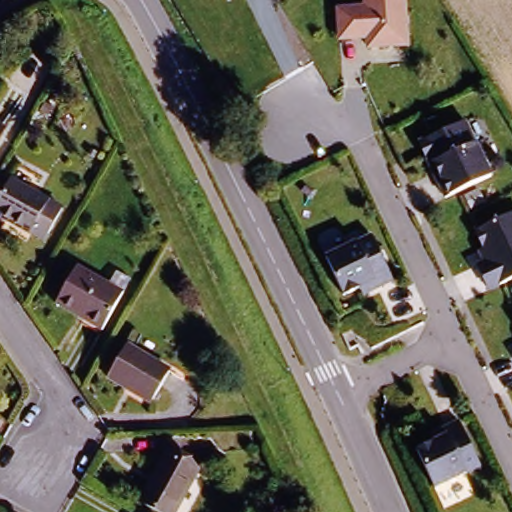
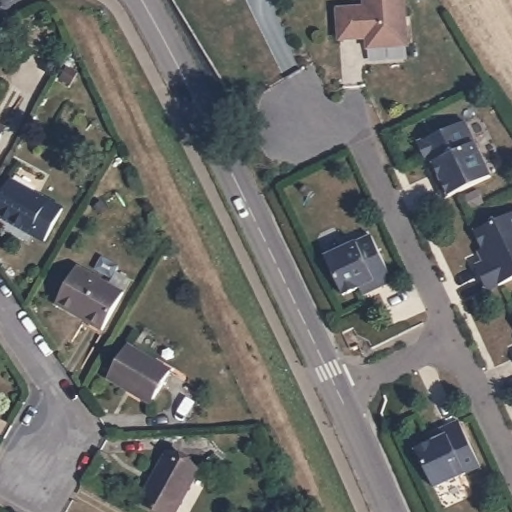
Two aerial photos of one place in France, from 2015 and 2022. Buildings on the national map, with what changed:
unchanged [(369,49),(369,42),(339,44),(335,8),(363,5),(362,0),(407,0),(411,49),(369,49)]
unchanged [(419,141),(464,123),(489,177),(446,199),(419,141)]
unchanged [(0,133),(0,127),(3,129),(0,133)]
unchanged [(57,208),(40,239),(0,217),(0,186),(4,179),(57,208)]
unchanged [(474,232),(512,215),(512,282),(499,289),(474,232)]
unchanged [(371,239),(393,288),(368,299),(364,290),(344,299),(326,260),(371,239)]
unchanged [(56,308),(76,269),(108,287),(114,274),(129,283),(123,295),(103,334),(56,308)]
unchanged [(126,349),(168,374),(151,406),(107,382),(126,349)]
unchanged [(416,451),(464,429),(484,470),(434,493),(416,451)]
unchanged [(165,454),(197,471),(174,512),(161,512),(138,500),(165,454)]

